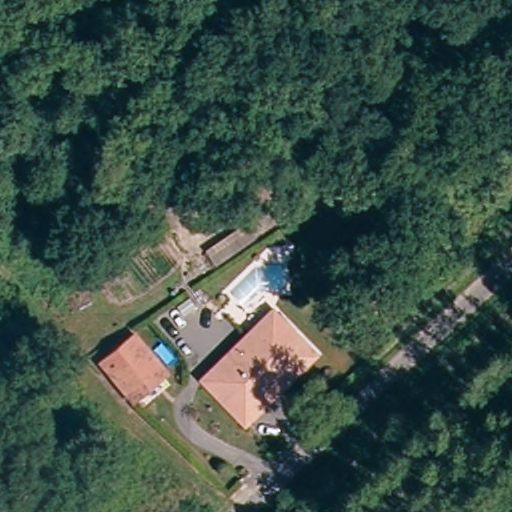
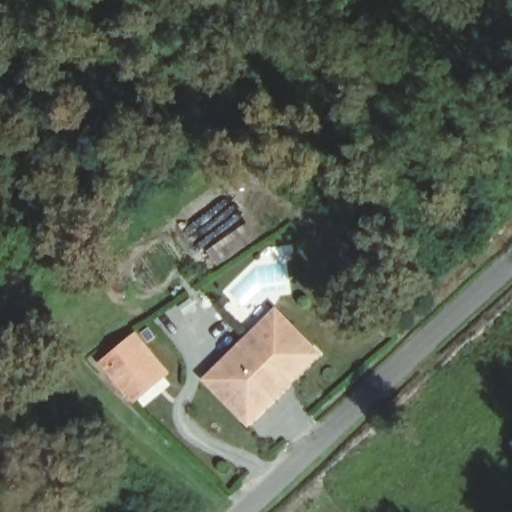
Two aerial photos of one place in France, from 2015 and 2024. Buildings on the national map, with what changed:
unchanged [(212,377),(281,311),(313,342),(320,351),(286,383),(252,417),(212,377)]
unchanged [(166,371),(139,401),(98,361),(130,337),(166,371)]

